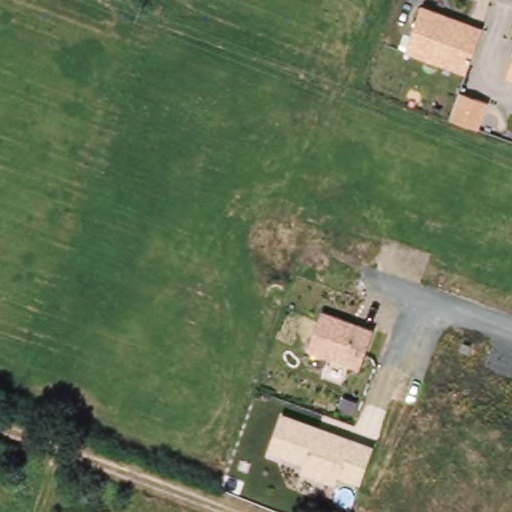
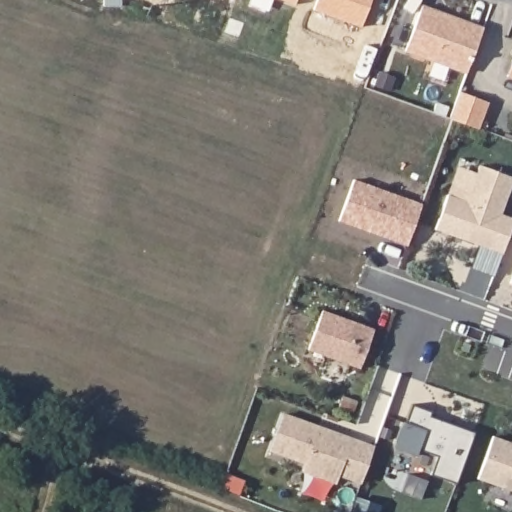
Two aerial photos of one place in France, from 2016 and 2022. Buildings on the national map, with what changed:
unchanged [(484,31),(467,79),(404,55),(421,8),(484,31)]
unchanged [(512,67),(512,79),(508,77),(512,67)]
unchanged [(481,129),(452,118),(462,91),(492,102),(481,129)]
new [(480,165),(512,177),(512,187),(502,215),(512,218),(512,229),(503,254),(435,231),(448,195),(467,201),(480,165)]
new [(422,204),(408,245),(340,222),(355,180),(422,204)]
new [(512,280),(512,284),(511,283),(512,280)]
unchanged [(362,367),(311,349),(324,310),(376,327),(362,367)]
new [(432,474),(438,457),(420,449),(417,457),(393,450),(403,421),(407,422),(414,405),(430,412),(428,417),(473,434),(456,483),(432,474)]
unchanged [(362,483),(340,476),(337,483),(303,471),(306,462),(272,451),(284,412),(377,445),(362,483)]
new [(512,491),(478,480),(494,436),(512,442),(512,491)]

